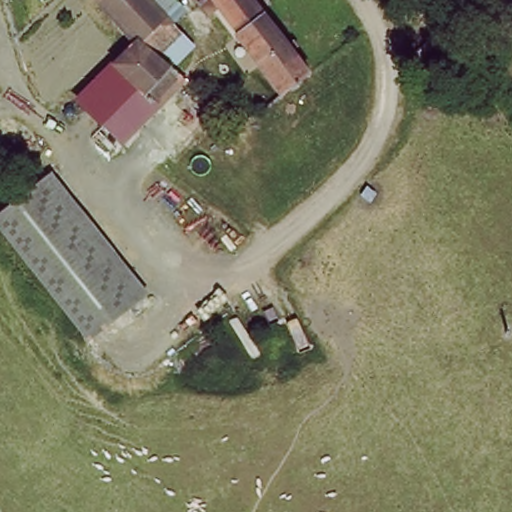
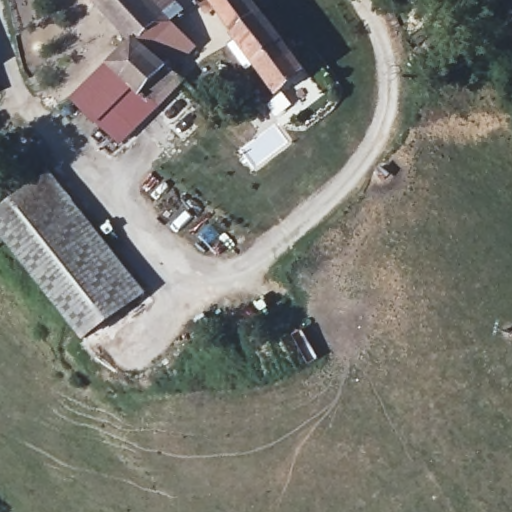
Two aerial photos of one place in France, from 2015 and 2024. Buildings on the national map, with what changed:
unchanged [(128,41),(92,0),(143,0),(153,11),(182,42),(154,69),(128,41)]
unchanged [(221,16),(212,22),(198,5),(205,0),(246,0),(307,77),(284,97),(221,16)]
unchanged [(163,79),(110,132),(74,101),(69,95),(124,44),(128,41),(154,69),(163,79)]
unchanged [(60,173),(155,296),(96,342),(0,223),(0,221),(60,173)]

